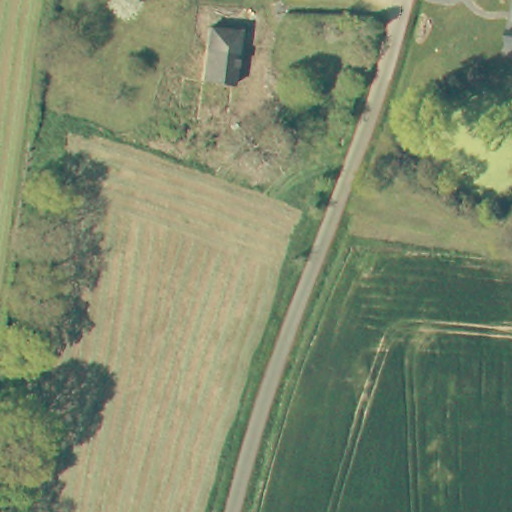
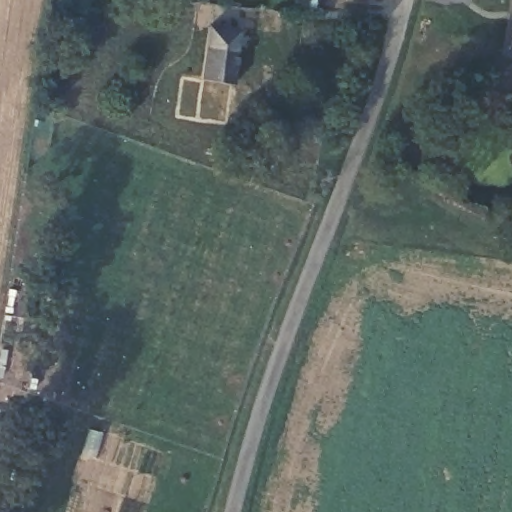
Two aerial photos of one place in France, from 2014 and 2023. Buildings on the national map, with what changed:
unchanged [(199,79),(204,50),(209,26),(241,29),(232,85),(230,85),(202,80),(199,79)]

